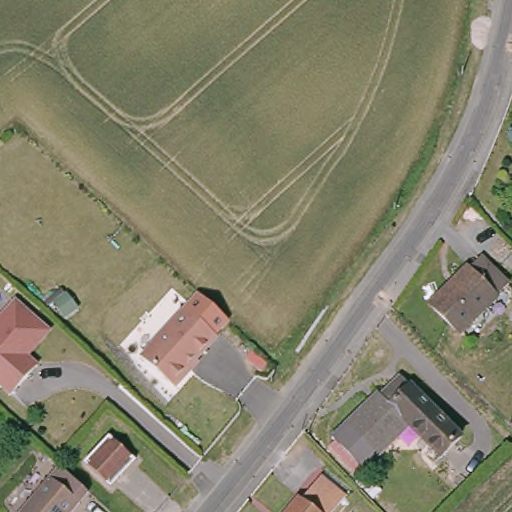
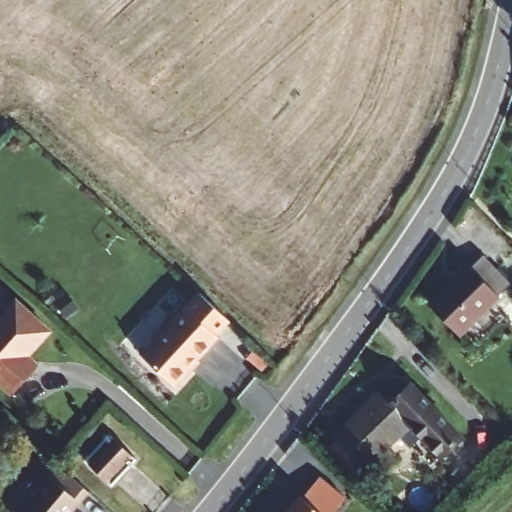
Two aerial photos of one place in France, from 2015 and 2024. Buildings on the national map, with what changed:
unchanged [(469,266),(470,267),(481,256),(509,285),(497,295),(499,297),(459,335),(430,304),(469,266)]
unchanged [(9,395),(0,388),(0,313),(11,301),(45,331),(22,356),(34,366),(17,385),(9,395)]
unchanged [(177,384),(144,354),(187,305),(218,333),(191,364),(193,366),(177,384)]
unchanged [(457,432),(436,452),(407,419),(375,450),(344,417),(374,387),(375,389),(377,390),(397,371),(404,377),(404,378),(457,432)]
unchanged [(136,460),(112,485),(86,459),(110,435),(136,460)]
unchanged [(88,493),(72,512),(20,512),(59,465),(88,493)]
unchanged [(300,497),(302,499),(320,477),(345,498),(334,512),(287,512),(300,497)]

